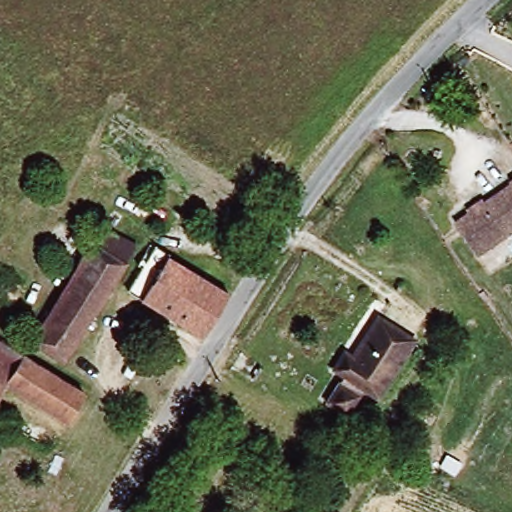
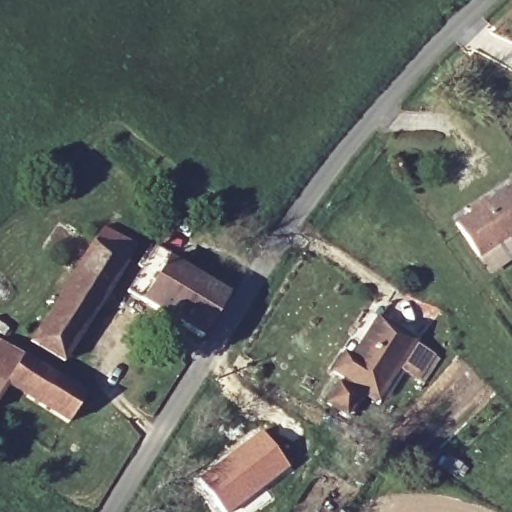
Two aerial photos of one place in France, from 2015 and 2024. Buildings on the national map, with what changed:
unchanged [(456,229),(471,219),(467,214),(482,204),(486,209),(512,191),(512,240),(480,262),(456,229)]
unchanged [(95,232),(130,253),(117,275),(81,254),(95,232)]
unchanged [(59,373),(23,352),(81,254),(117,275),(59,373)]
unchanged [(206,339),(126,293),(148,256),(195,283),(198,278),(233,298),(206,339)]
unchanged [(355,363),(380,323),(414,344),(378,403),(333,376),(345,357),(355,363)]
unchanged [(69,428),(8,391),(0,404),(0,342),(25,358),(90,395),(69,428)]
unchanged [(346,421),(328,409),(340,391),(358,402),(346,421)]
new [(287,468),(232,512),(224,512),(196,478),(257,431),(287,468)]

